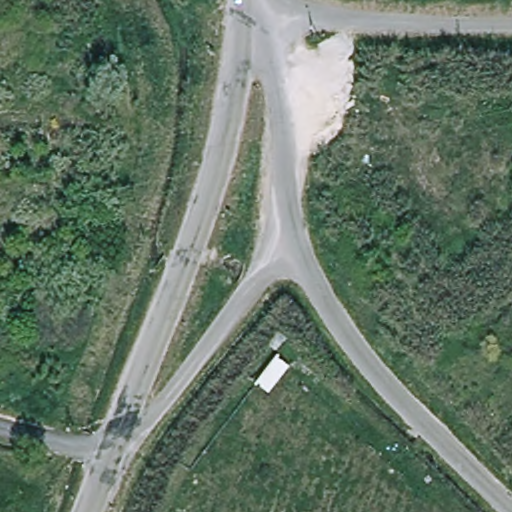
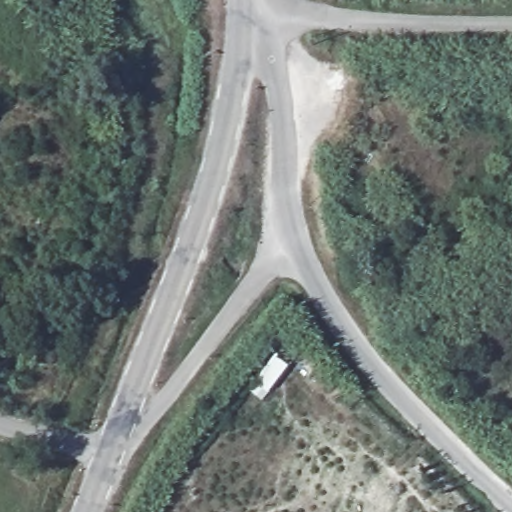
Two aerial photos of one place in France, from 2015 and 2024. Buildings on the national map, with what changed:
[]

